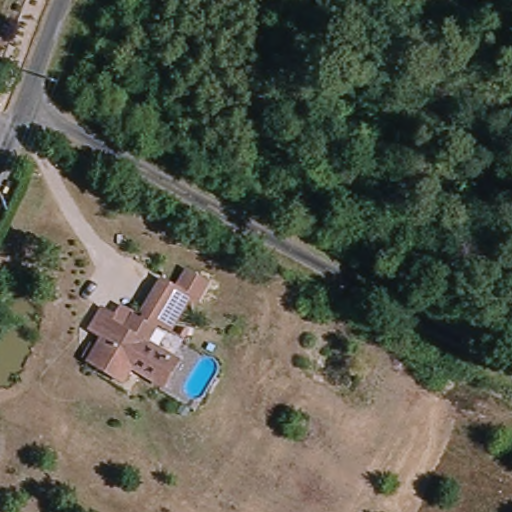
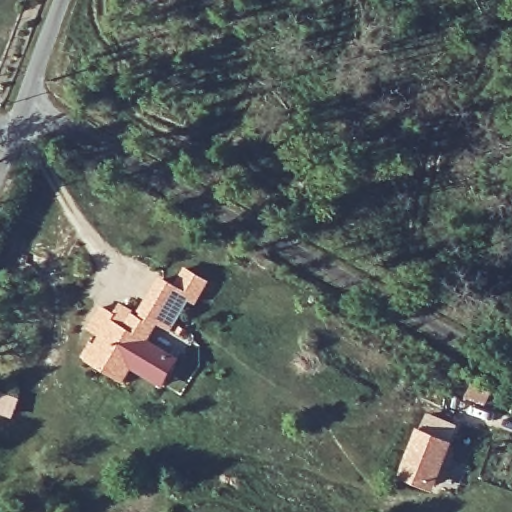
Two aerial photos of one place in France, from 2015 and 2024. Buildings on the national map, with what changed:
unchanged [(199,285),(189,302),(183,298),(163,333),(135,317),(155,283),(167,290),(178,272),(199,285)]
unchanged [(154,389),(124,372),(116,386),(80,366),(94,342),(82,334),(95,313),(107,320),(113,311),(147,332),(140,345),(170,362),(154,389)]
new [(443,469),(446,470),(442,483),(439,481),(435,492),(399,478),(418,429),(454,444),(443,469)]

